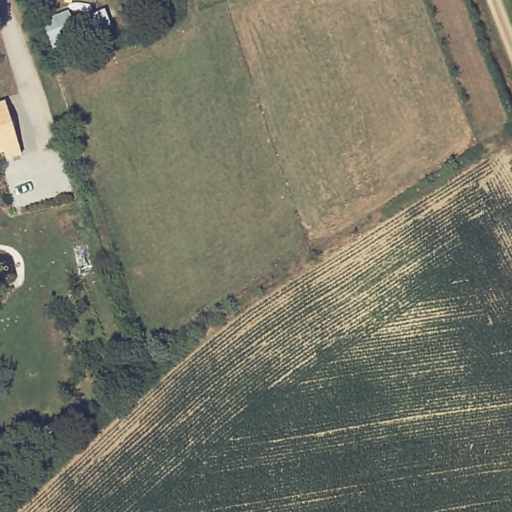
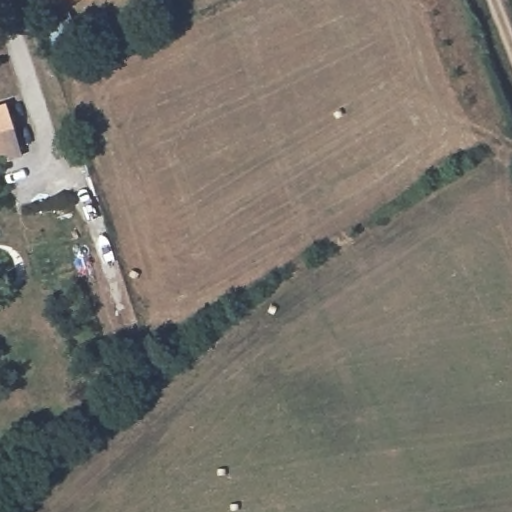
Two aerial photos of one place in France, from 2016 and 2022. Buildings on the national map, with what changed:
unchanged [(86,0),(94,0),(94,1),(86,0)]
unchanged [(6,105),(22,155),(6,160),(4,151),(0,152),(0,107),(6,105)]

